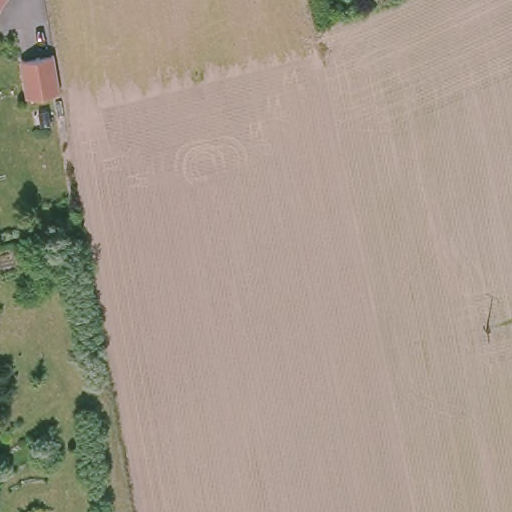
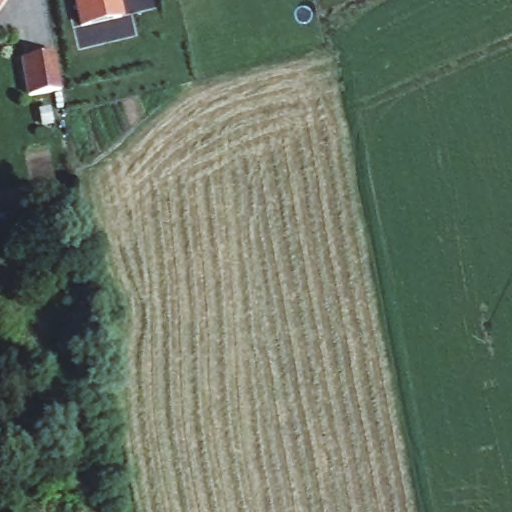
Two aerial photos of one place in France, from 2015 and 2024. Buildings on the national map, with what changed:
unchanged [(4,0),(0,6),(0,0),(4,0)]
new [(80,25),(74,0),(116,0),(120,16),(80,25)]
unchanged [(53,53),(60,90),(28,96),(21,59),(53,53)]

